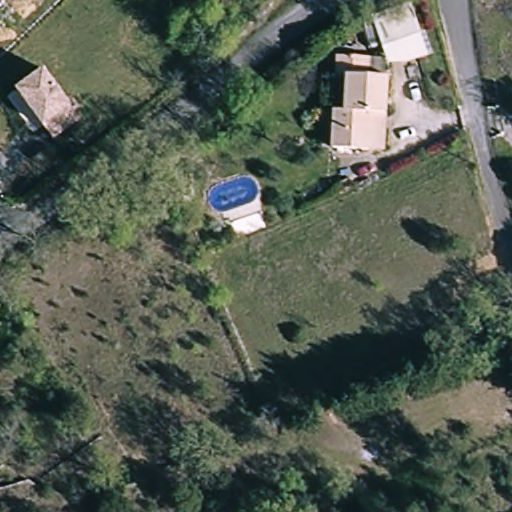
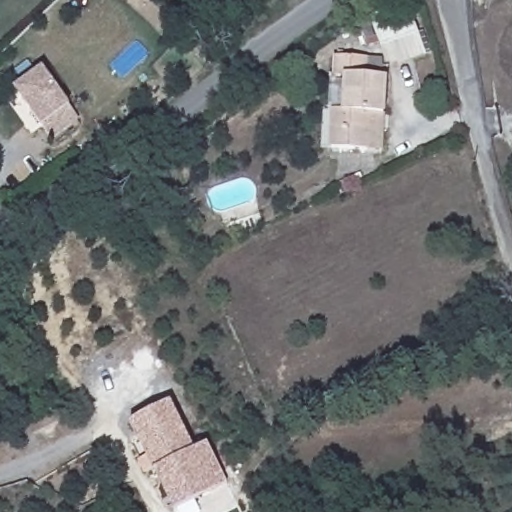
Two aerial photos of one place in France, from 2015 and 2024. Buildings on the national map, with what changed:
unchanged [(403,65),(387,65),(371,18),(409,5),(426,57),(403,65)]
unchanged [(374,145),(337,145),(339,110),(331,109),(333,76),(339,76),(341,57),(373,58),(373,76),(389,77),(388,111),(387,145),(374,145)]
unchanged [(70,106),(78,119),(51,139),(41,126),(14,89),(42,69),(70,106)]
new [(161,395),(186,443),(199,436),(218,475),(166,501),(122,415),(161,395)]

